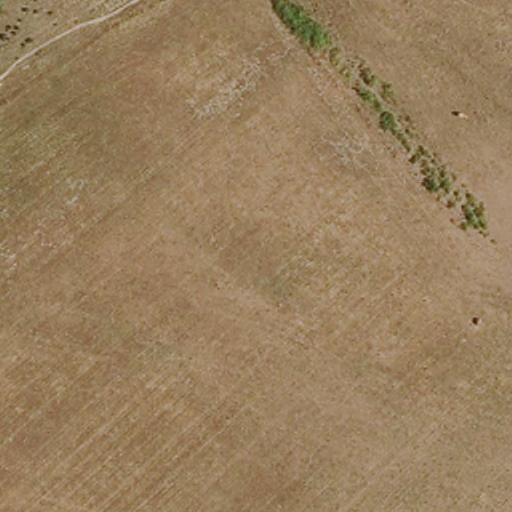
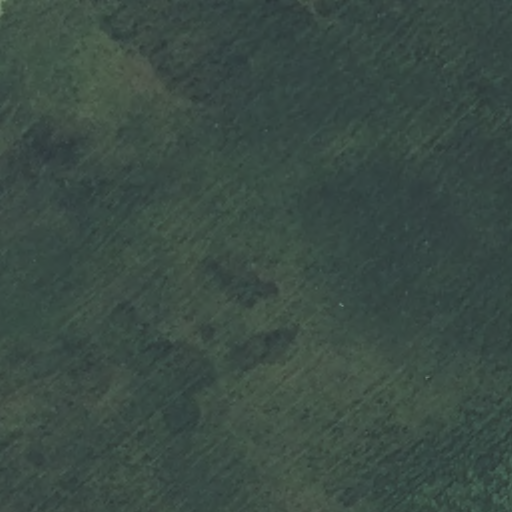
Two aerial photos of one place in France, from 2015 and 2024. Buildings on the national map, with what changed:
[]

